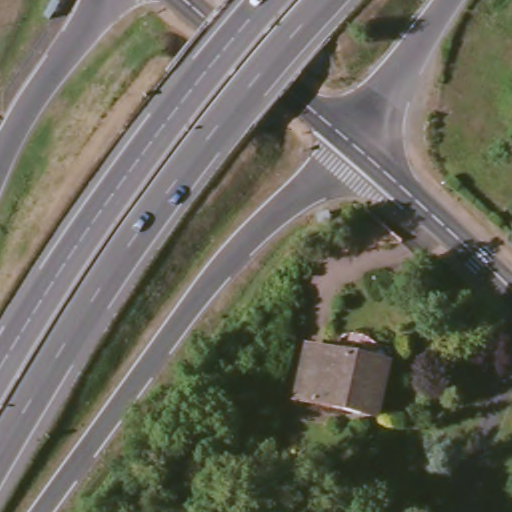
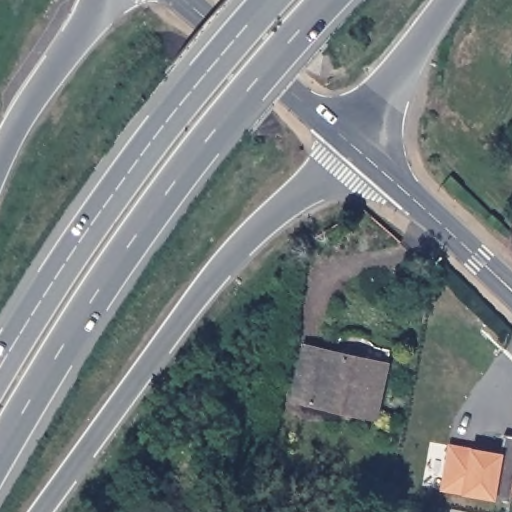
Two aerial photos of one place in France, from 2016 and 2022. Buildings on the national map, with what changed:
unchanged [(297,399),(307,347),(386,364),(375,416),(297,399)]
new [(504,453),(505,436),(512,438),(512,498),(496,496),(495,500),(463,495),(441,492),(449,443),(471,448),(504,453)]

